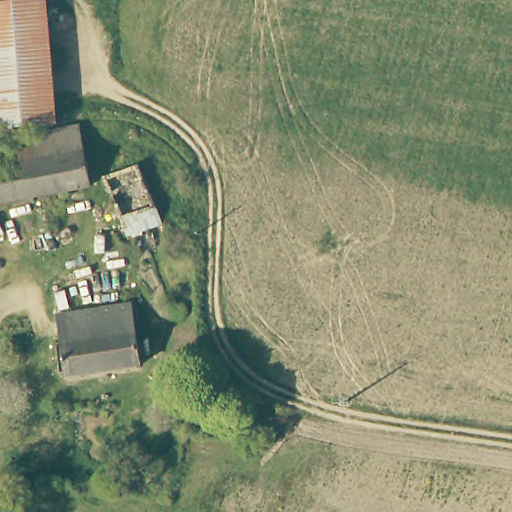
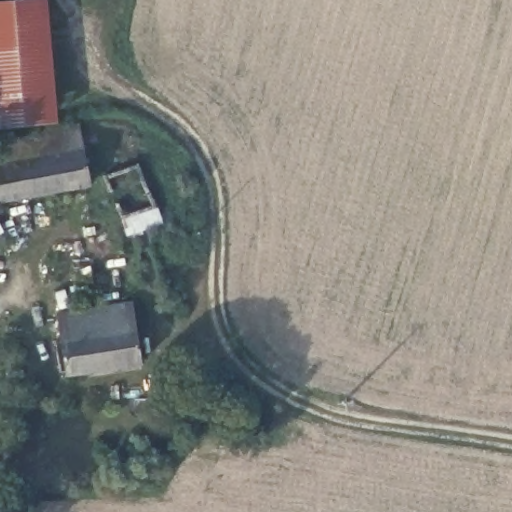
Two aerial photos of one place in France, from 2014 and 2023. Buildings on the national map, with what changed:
unchanged [(52,127),(0,129),(0,5),(45,2),(52,127)]
unchanged [(0,204),(0,163),(3,162),(0,147),(0,140),(68,129),(80,127),(87,159),(92,188),(0,204)]
unchanged [(165,228),(129,242),(105,182),(115,179),(107,156),(129,148),(137,170),(142,168),(165,228)]
unchanged [(146,362),(71,374),(61,311),(136,299),(136,302),(146,362)]

